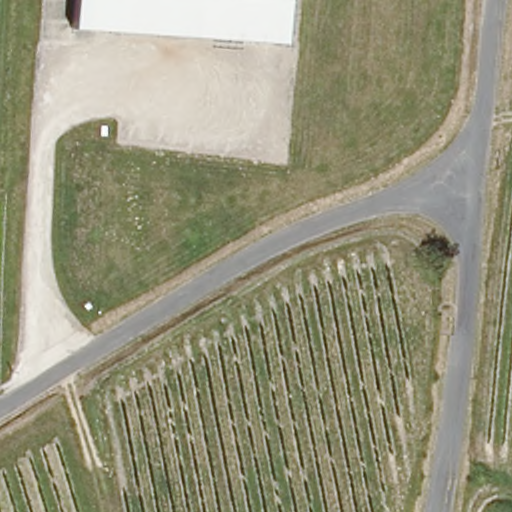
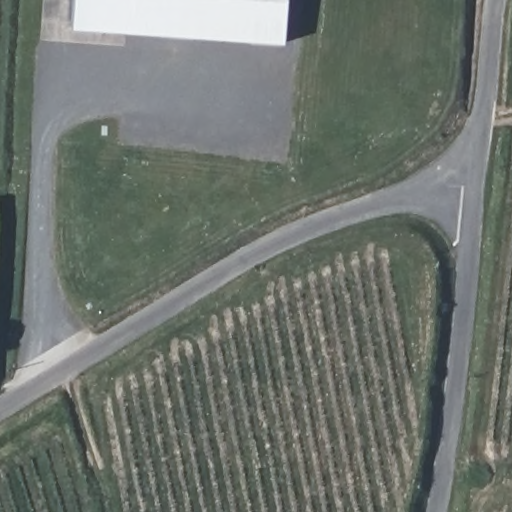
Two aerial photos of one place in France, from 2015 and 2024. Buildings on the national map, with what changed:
unchanged [(281,42),(67,27),(69,0),(283,0),(281,42)]

